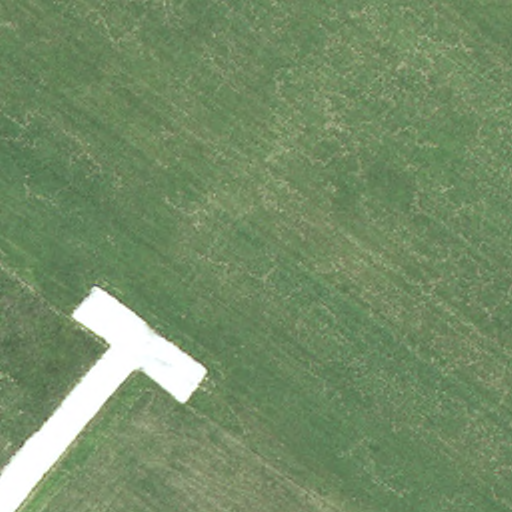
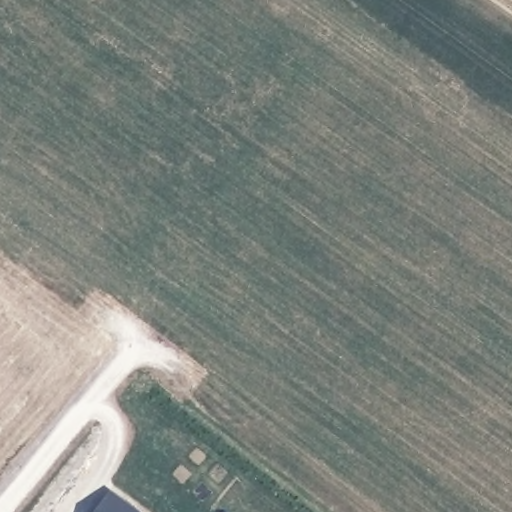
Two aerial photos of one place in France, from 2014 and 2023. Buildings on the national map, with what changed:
new [(108,489),(139,512),(92,512),(108,489)]

